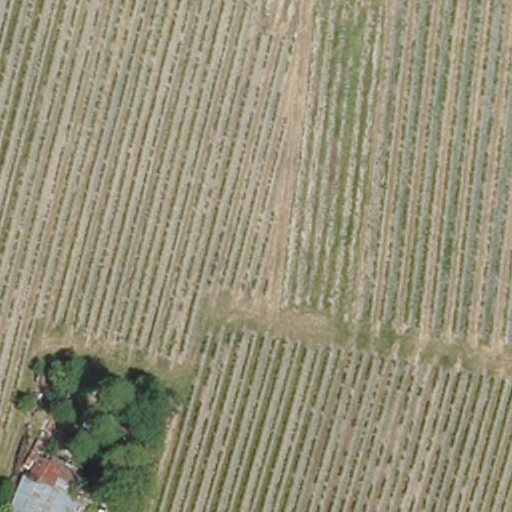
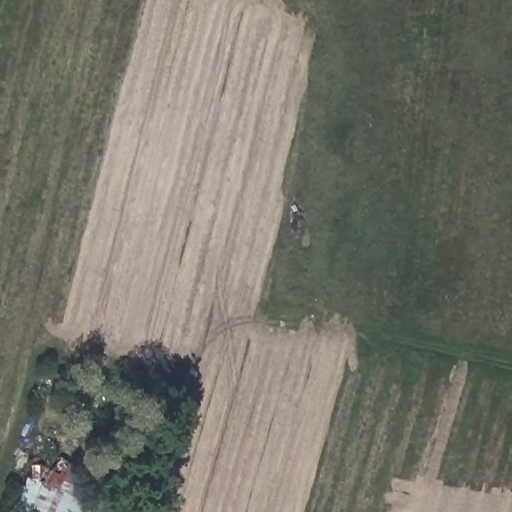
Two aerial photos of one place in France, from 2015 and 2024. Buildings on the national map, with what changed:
unchanged [(30,506),(39,482),(25,475),(40,442),(78,461),(65,492),(56,512),(42,512),(30,506)]

